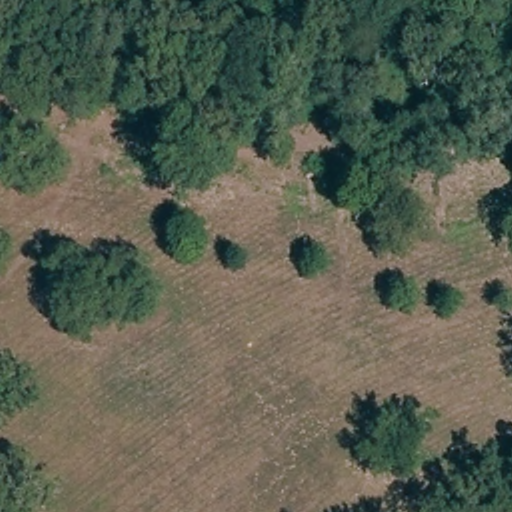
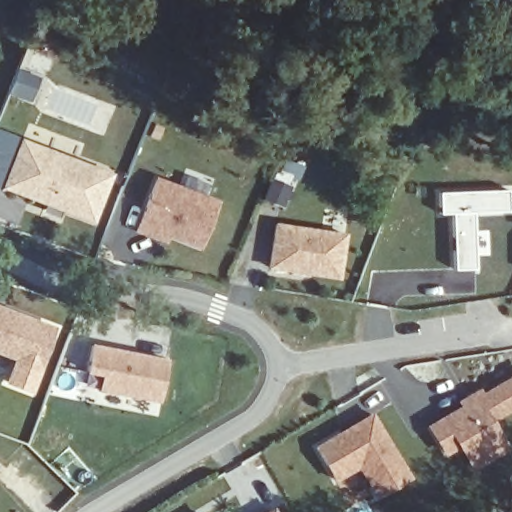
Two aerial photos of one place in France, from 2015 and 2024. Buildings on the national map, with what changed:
new [(0,187),(0,129),(20,136),(3,188),(0,187)]
new [(20,136),(111,171),(95,220),(3,188),(20,136)]
new [(166,243),(136,231),(156,175),(219,199),(201,247),(169,236),(166,243)]
new [(476,269),(455,270),(453,212),(440,213),(440,191),(508,189),(509,210),(473,212),(476,269)]
new [(275,221),(347,232),(340,279),(267,269),(275,221)]
new [(42,369),(0,354),(0,307),(56,326),(42,369)]
new [(167,359),(160,402),(98,391),(102,376),(84,372),(91,344),(167,359)]
new [(492,421),(507,449),(470,471),(459,448),(443,457),(424,426),(457,408),(454,403),(478,388),(481,393),(512,374),(512,410),(492,421)]
new [(409,479),(376,499),(358,470),(335,482),(313,447),(371,412),(409,479)]
new [(277,512),(261,512),(272,505),(277,512)]

